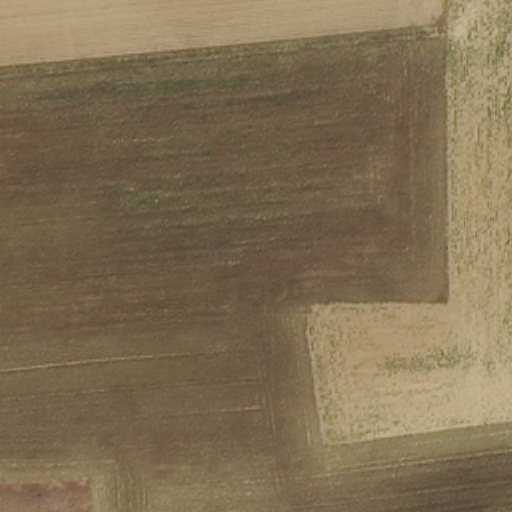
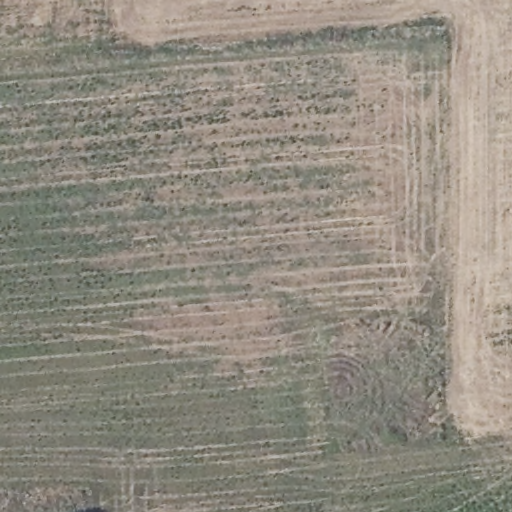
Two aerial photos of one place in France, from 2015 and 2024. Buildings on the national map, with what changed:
[]

